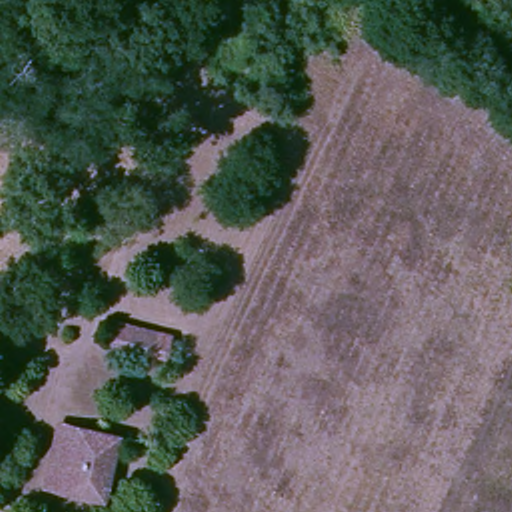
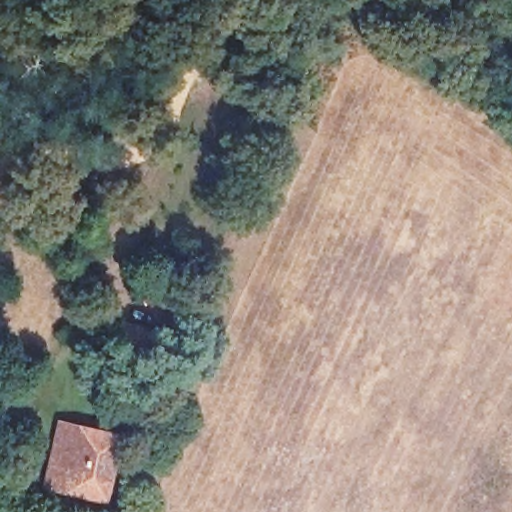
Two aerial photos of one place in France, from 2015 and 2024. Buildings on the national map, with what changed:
unchanged [(115,328),(161,338),(172,340),(170,355),(158,353),(132,347),(131,352),(111,348),(115,328)]
unchanged [(60,426),(80,430),(120,436),(108,501),(48,491),(57,445),(60,426)]

